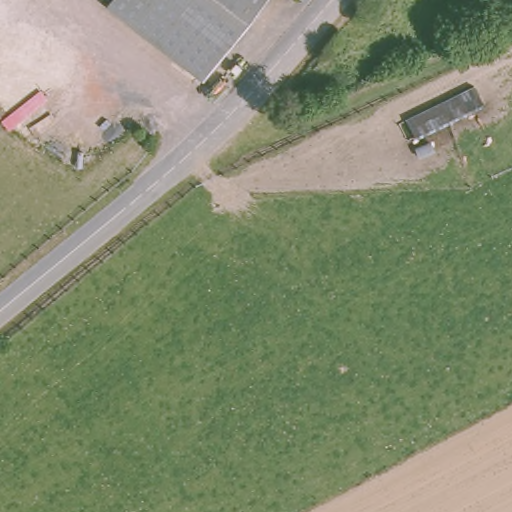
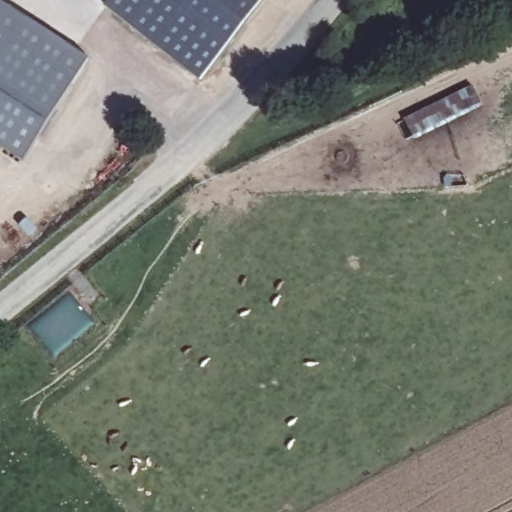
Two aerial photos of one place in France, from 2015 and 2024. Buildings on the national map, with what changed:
unchanged [(114,0),(179,0),(195,13),(232,44),(206,80),(110,5),(114,0)]
unchanged [(232,44),(195,13),(179,0),(265,0),(232,44)]
new [(24,160),(0,144),(0,1),(86,59),(24,160)]
unchanged [(472,85),(483,107),(418,136),(408,118),(472,85)]

